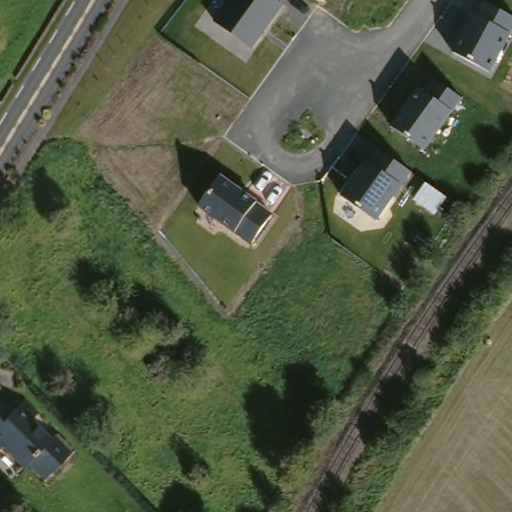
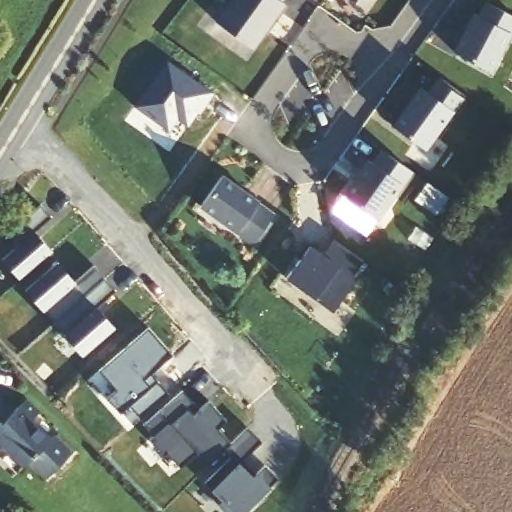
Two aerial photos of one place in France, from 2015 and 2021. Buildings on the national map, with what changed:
unchanged [(231,0),(281,0),(285,4),(252,49),(215,22),(231,0)]
unchanged [(471,14),(478,16),(486,2),(512,16),(512,33),(491,72),(452,51),(471,14)]
new [(134,106),(168,60),(214,91),(201,114),(197,112),(187,125),(177,119),(168,130),(134,106)]
unchanged [(392,125),(417,88),(425,92),(435,79),(464,98),(454,111),(425,151),(392,125)]
unchanged [(341,194),(366,160),(373,164),(382,151),(412,172),(402,185),(377,220),(341,194)]
unchanged [(222,174),(258,200),(257,202),(273,214),(252,244),(235,233),(200,207),(222,174)]
new [(15,249),(4,237),(36,207),(48,219),(31,235),(49,255),(18,282),(0,262),(15,249)]
new [(363,260),(351,275),(357,279),(332,313),(314,301),(285,280),(310,246),(320,252),(331,239),(363,260)]
new [(54,265),(71,284),(91,267),(104,280),(54,324),(24,293),(54,265)]
new [(104,280),(115,292),(95,309),(112,329),(82,356),(54,324),(104,280)]
new [(169,396),(140,421),(130,409),(120,417),(106,402),(115,393),(98,374),(147,330),(171,357),(150,376),(156,382),(169,396)]
new [(181,392),(194,405),(188,411),(192,415),(210,399),(229,419),(220,427),(232,441),(208,466),(197,454),(181,469),(168,454),(165,457),(150,440),(153,437),(143,426),(181,392)]
unchanged [(16,411),(29,399),(43,412),(36,419),(54,437),(59,432),(74,447),(76,449),(50,477),(35,460),(30,465),(7,444),(2,450),(0,448),(0,395),(16,411)]
new [(224,450),(249,425),(263,439),(245,459),(258,472),(267,463),(280,476),(266,490),(262,487),(254,495),(258,499),(245,512),(228,512),(221,504),(225,501),(206,483),(231,457),(224,450)]

